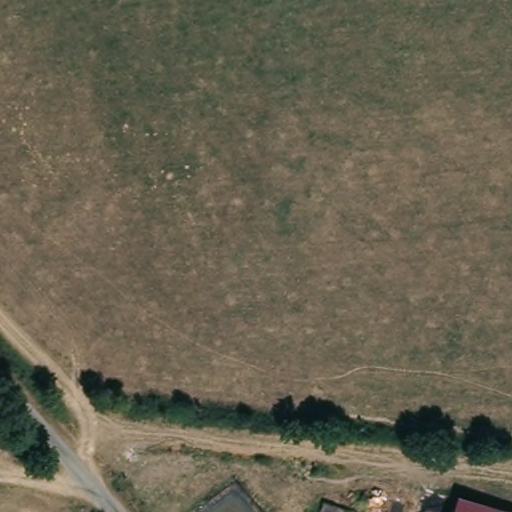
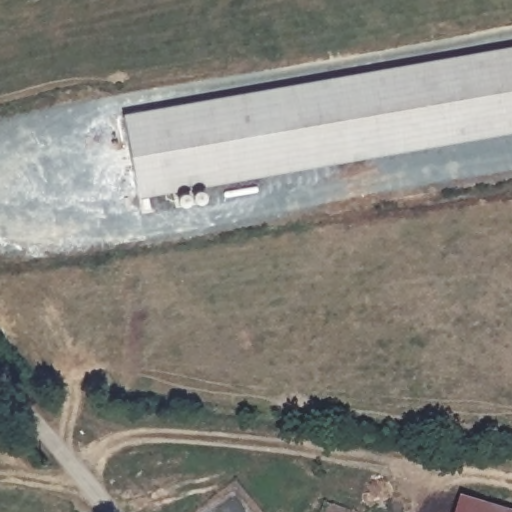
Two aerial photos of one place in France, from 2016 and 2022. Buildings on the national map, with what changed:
new [(138,198),(122,113),(512,46),(512,132),(138,198)]
unchanged [(473,508),(485,512),(461,512),(463,505),(473,508)]

